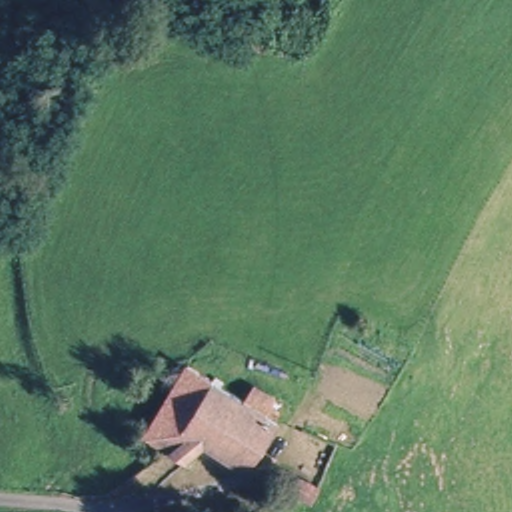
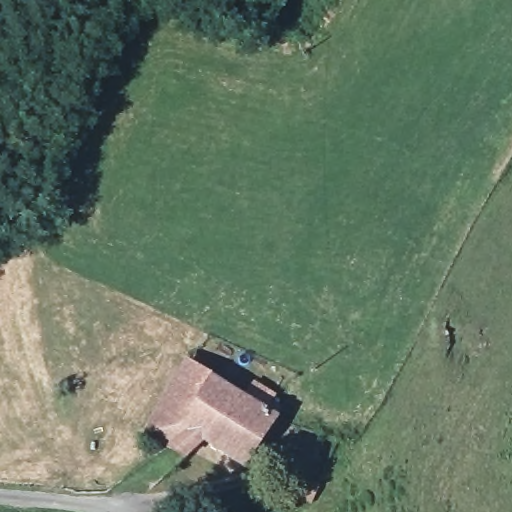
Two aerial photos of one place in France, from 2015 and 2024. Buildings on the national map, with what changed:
unchanged [(146,430),(156,414),(186,363),(243,394),(252,378),(269,388),(259,403),(271,410),(240,462),(184,431),(175,447),(146,430)]
unchanged [(288,473),(317,492),(308,508),(279,489),(288,473)]

